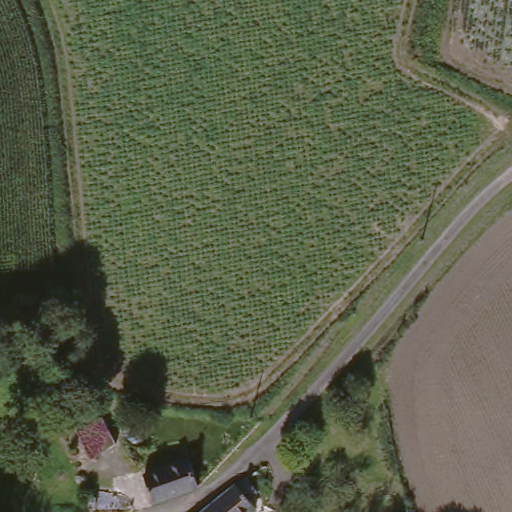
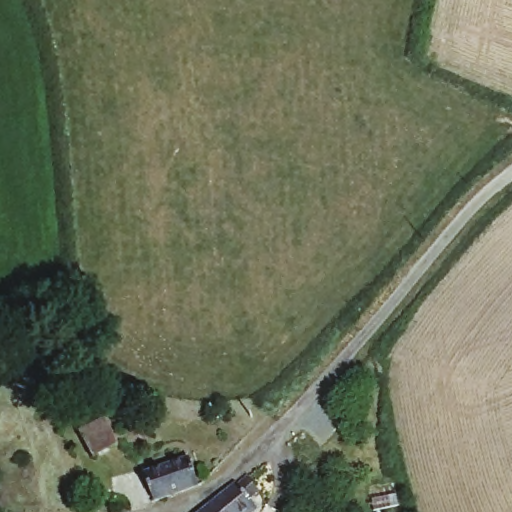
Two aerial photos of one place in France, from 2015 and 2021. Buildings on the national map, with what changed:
unchanged [(101,416),(113,445),(89,455),(76,427),(101,416)]
unchanged [(144,475),(188,456),(200,481),(170,495),(156,501),(144,475)]
unchanged [(248,484),(256,492),(246,502),(254,510),(252,512),(207,512),(244,479),(248,484)]

